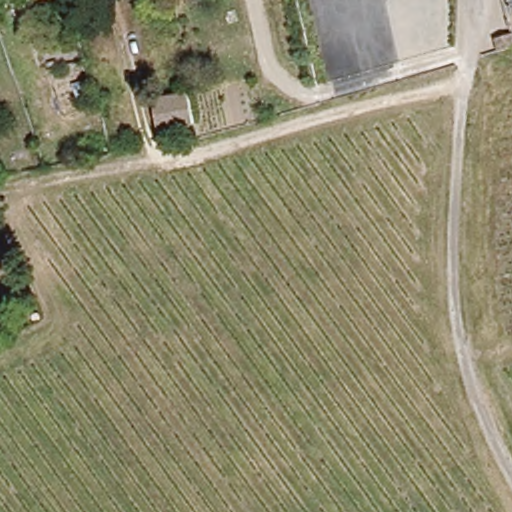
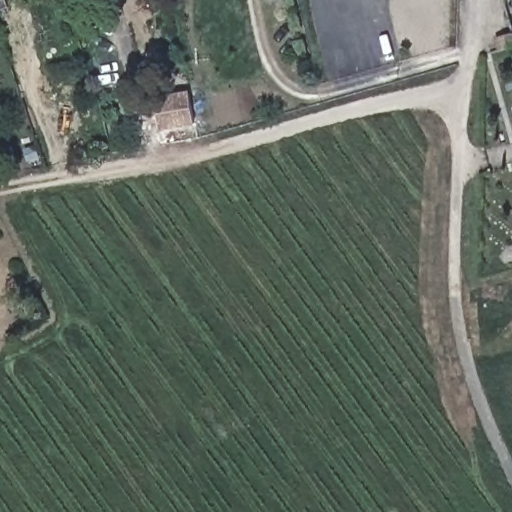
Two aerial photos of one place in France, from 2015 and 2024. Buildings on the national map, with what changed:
unchanged [(73,4),(47,10),(45,0),(72,0),(73,4)]
unchanged [(501,50),(497,37),(512,32),(512,46),(501,50)]
unchanged [(192,121),(159,128),(154,100),(187,94),(192,121)]
unchanged [(264,107),(267,115),(257,118),(254,110),(264,107)]

